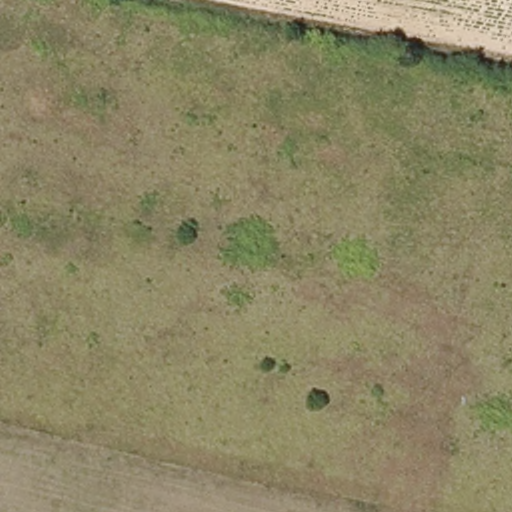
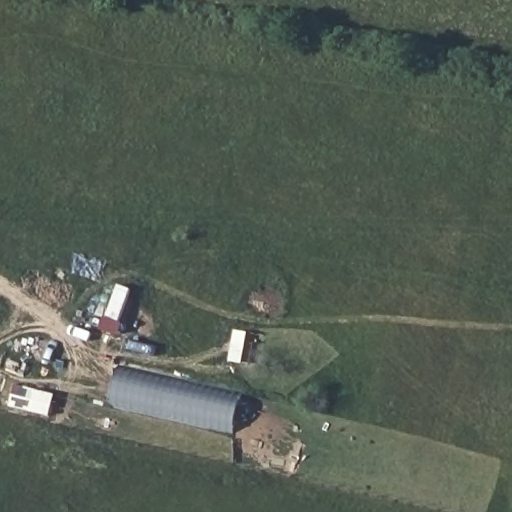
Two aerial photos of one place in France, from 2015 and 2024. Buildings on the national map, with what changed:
new [(117,371),(238,397),(231,432),(110,405),(117,371)]

